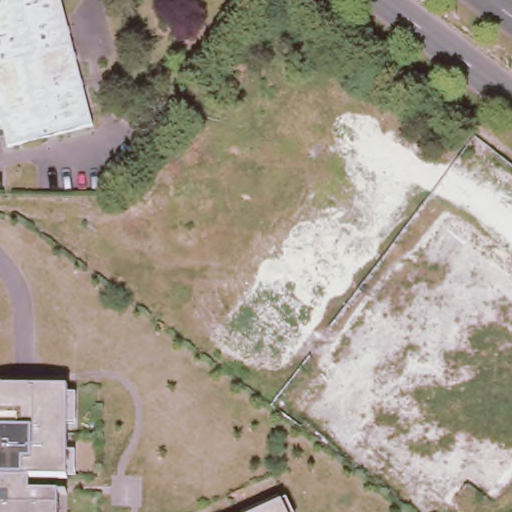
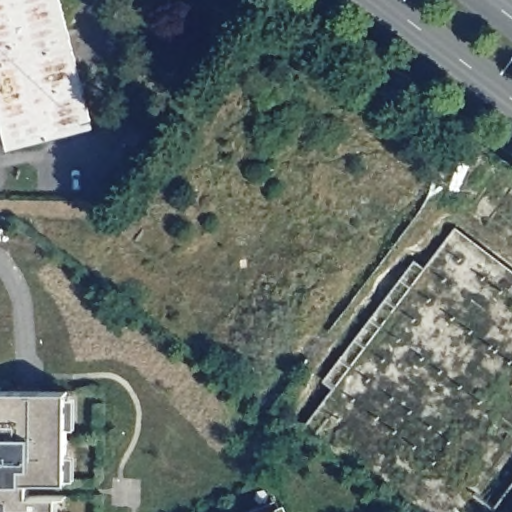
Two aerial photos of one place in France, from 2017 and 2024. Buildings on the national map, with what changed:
unchanged [(0,108),(0,0),(63,0),(97,131),(12,154),(0,108)]
unchanged [(68,512),(0,512),(0,386),(2,386),(2,392),(69,390),(69,480),(68,512)]
unchanged [(265,512),(280,505),(284,512),(265,512)]

